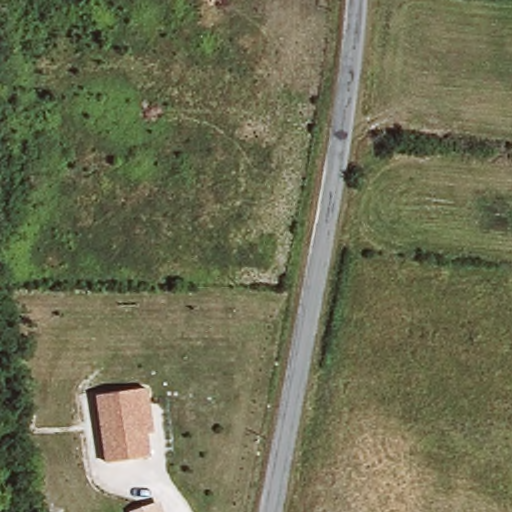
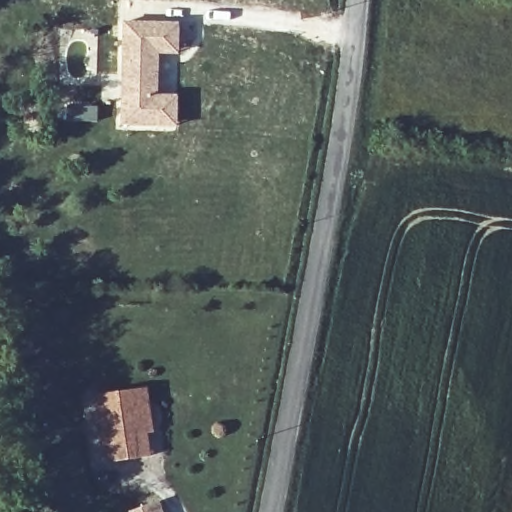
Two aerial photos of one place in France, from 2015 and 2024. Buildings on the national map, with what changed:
new [(120,126),(123,22),(179,23),(179,54),(158,54),(157,96),(177,96),(177,127),(120,126)]
unchanged [(148,386),(155,430),(148,431),(151,457),(106,463),(95,395),(148,386)]
unchanged [(165,512),(130,512),(161,500),(165,512)]

